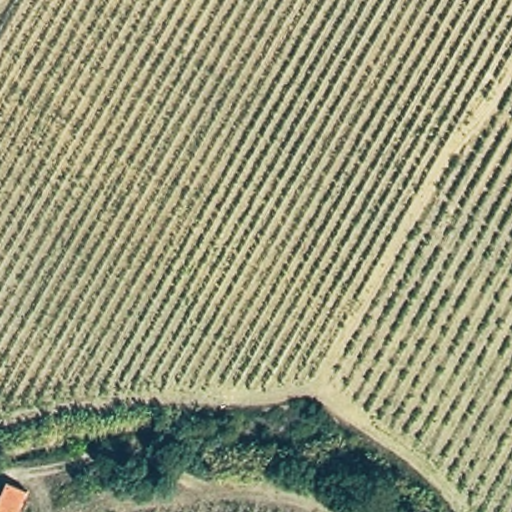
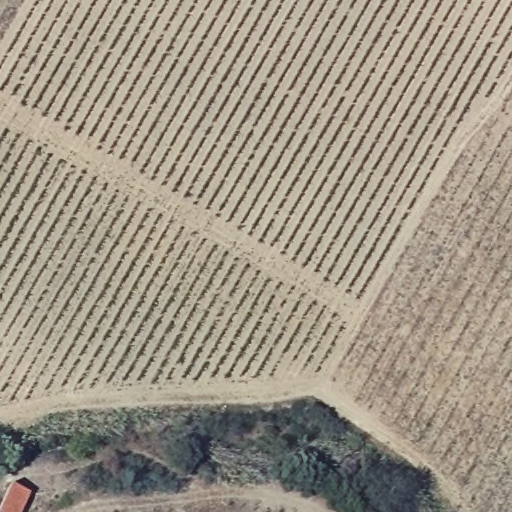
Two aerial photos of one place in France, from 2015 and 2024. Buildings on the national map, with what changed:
unchanged [(31,494),(22,512),(0,512),(0,510),(12,486),(31,494)]

